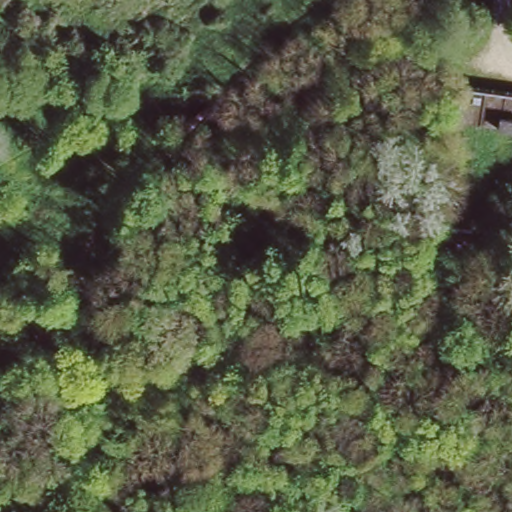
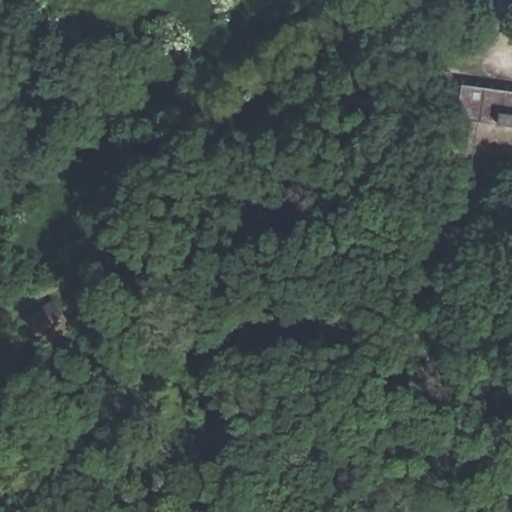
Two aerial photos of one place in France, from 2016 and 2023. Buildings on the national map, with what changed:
unchanged [(459,85),(512,93),(512,128),(454,118),(459,85)]
unchanged [(439,222),(473,228),(468,256),(434,250),(439,222)]
unchanged [(36,310),(53,336),(24,356),(7,330),(36,310)]

